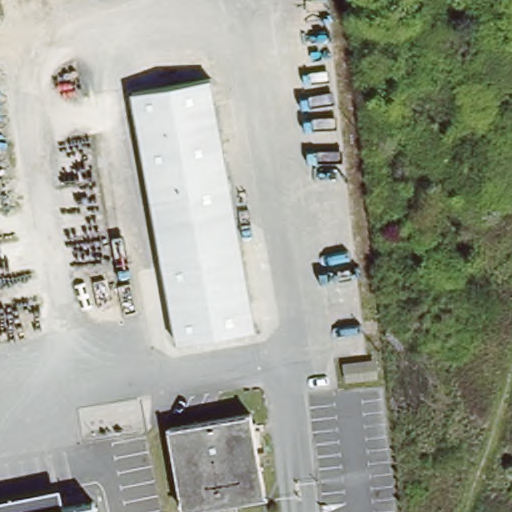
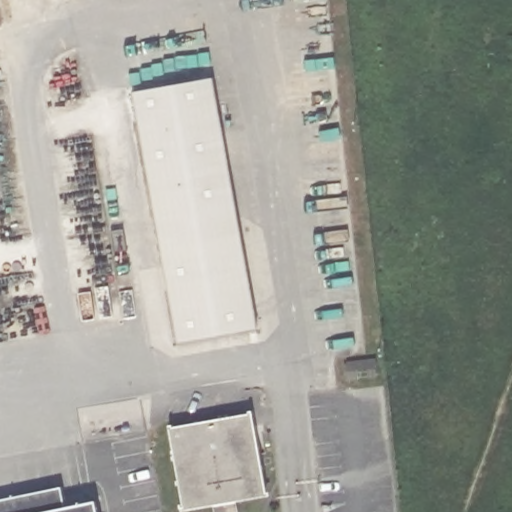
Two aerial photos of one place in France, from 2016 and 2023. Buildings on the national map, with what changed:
unchanged [(186,338),(141,88),(216,75),(261,325),(186,338)]
unchanged [(187,510),(171,429),(248,414),(264,495),(187,510)]
unchanged [(60,486),(64,506),(92,500),(94,512),(0,512),(0,499),(60,486)]

